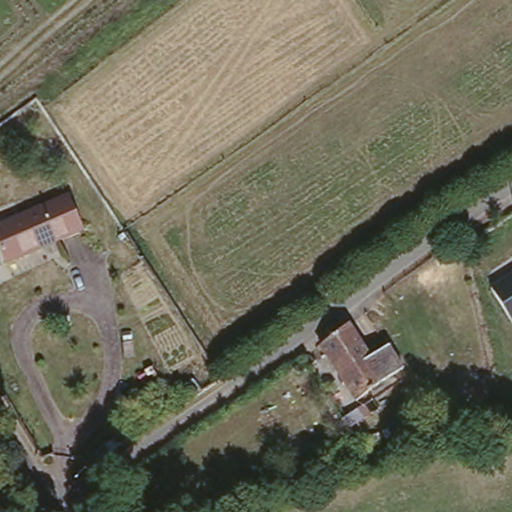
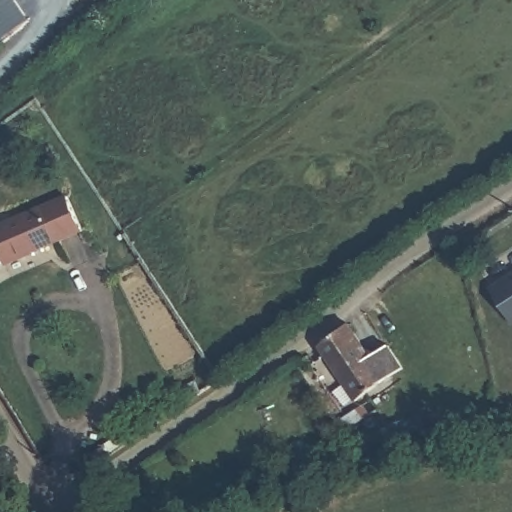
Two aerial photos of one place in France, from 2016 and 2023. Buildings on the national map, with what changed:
new [(0,44),(0,0),(15,0),(29,21),(0,44)]
unchanged [(69,196),(84,231),(58,242),(9,263),(0,238),(0,225),(43,207),(69,196)]
unchanged [(489,289),(512,273),(512,322),(489,289)]
unchanged [(402,370),(384,383),(367,393),(356,401),(319,347),(348,325),(369,359),(388,346),(402,370)]
unchanged [(363,441),(362,436),(389,429),(391,434),(363,441)]

